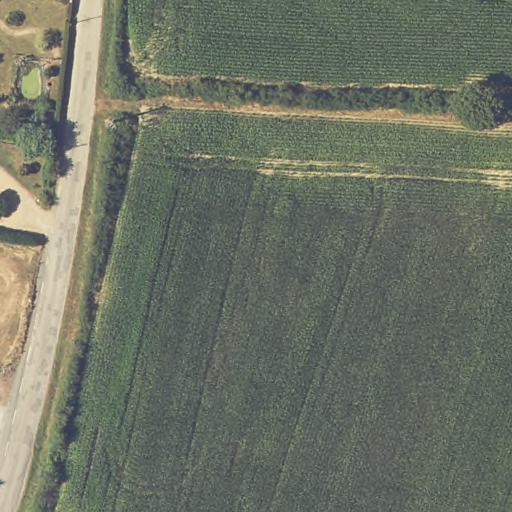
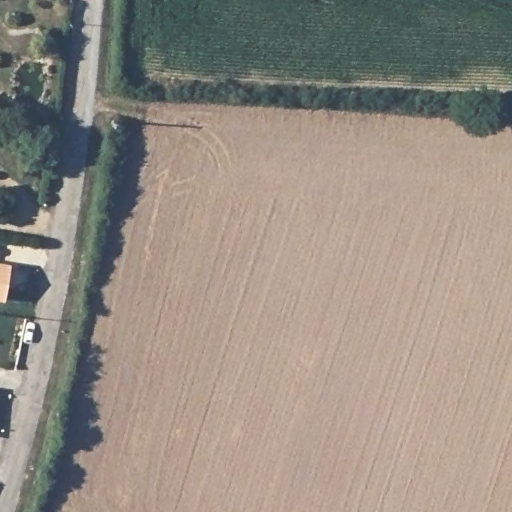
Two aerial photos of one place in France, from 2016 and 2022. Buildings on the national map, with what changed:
new [(6,301),(0,300),(0,262),(12,264),(6,301)]

